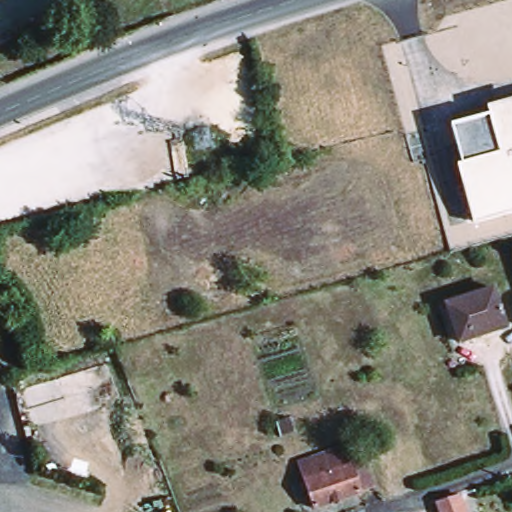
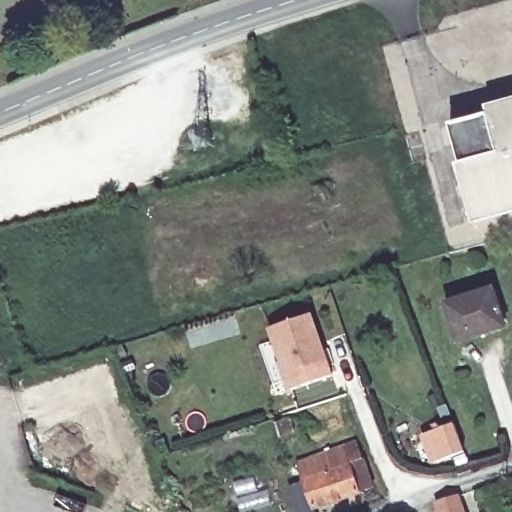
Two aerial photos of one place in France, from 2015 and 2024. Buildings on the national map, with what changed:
unchanged [(460,169),(465,168),(454,129),(512,113),(512,214),(476,224),(460,169)]
unchanged [(506,327),(458,343),(444,304),(492,287),(506,327)]
new [(290,390),(269,330),(312,313),(333,373),(290,390)]
unchanged [(376,492),(316,512),(301,512),(293,490),(308,485),(302,467),(362,447),(376,492)]
unchanged [(437,505),(451,500),(459,497),(464,512),(439,512),(437,505)]

